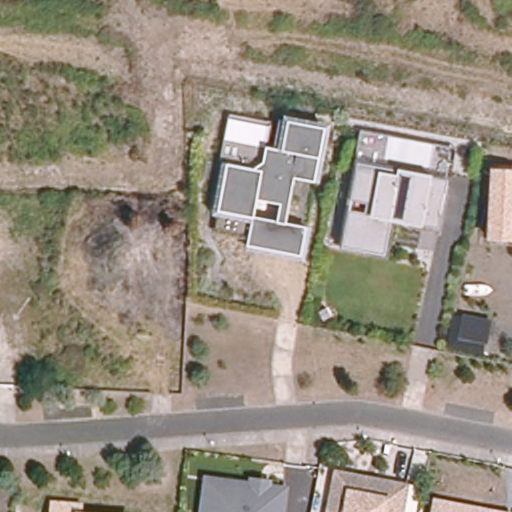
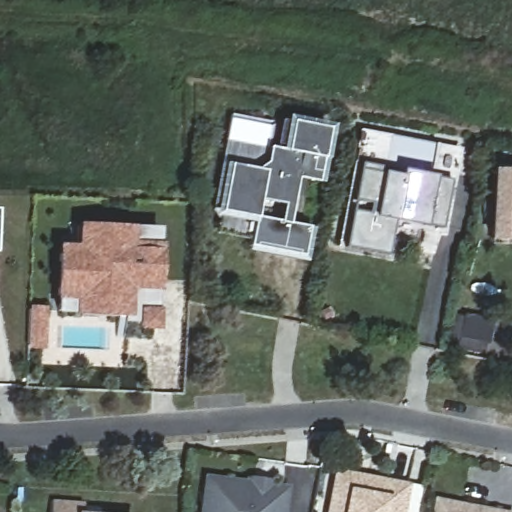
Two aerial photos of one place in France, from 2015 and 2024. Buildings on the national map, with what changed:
unchanged [(271,122),(264,147),(272,149),(279,118),(325,129),(320,157),(318,156),(314,181),(294,176),(286,221),(275,219),(278,203),(256,198),(253,215),(250,215),(248,236),(216,229),(219,209),(212,207),(232,114),(271,122)]
unchanged [(456,150),(440,235),(390,224),(384,255),(340,246),(364,130),(456,150)]
unchanged [(490,170),(512,170),(512,242),(487,241),(490,170)]
new [(255,216),(275,219),(286,221),(310,228),(303,262),(246,251),(255,216)]
new [(136,229),(136,227),(157,228),(156,245),(157,245),(155,288),(154,288),(153,312),(154,312),(154,325),(140,325),(140,320),(124,318),(124,316),(79,314),(80,310),(58,309),(59,294),(57,294),(60,252),(61,252),(61,247),(75,248),(76,226),(136,229)]
new [(40,308),(39,345),(27,344),(29,308),(40,308)]
unchanged [(409,483),(404,512),(326,512),(335,469),(409,483)]
unchanged [(248,481),(248,476),(272,479),(272,484),(288,486),(284,512),(199,512),(203,474),(248,481)]
unchanged [(432,497),(511,512),(430,512),(432,497)]
unchanged [(51,502),(81,505),(81,512),(51,512),(51,502)]

